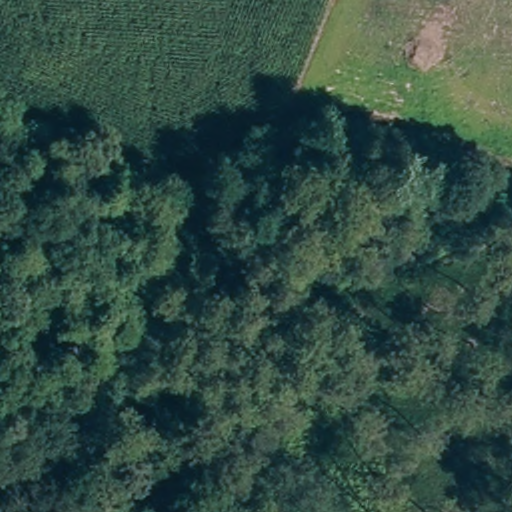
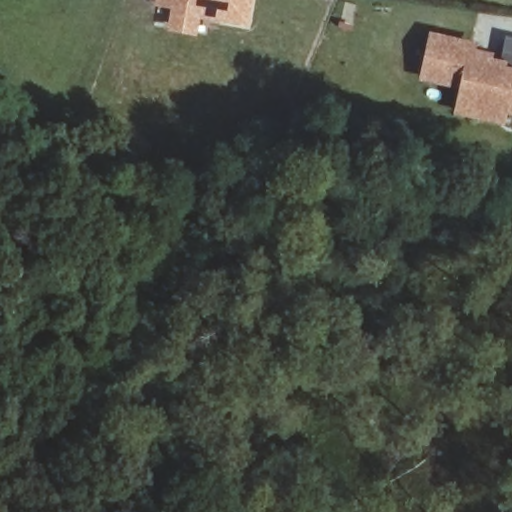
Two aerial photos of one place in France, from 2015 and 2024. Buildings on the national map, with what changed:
new [(249,28),(200,20),(197,37),(166,31),(170,9),(153,5),(154,0),(254,0),(249,28)]
new [(461,115),(464,104),(467,89),(427,81),(436,39),(477,48),(475,54),(493,58),(492,65),(506,68),(512,42),(512,114),(509,113),(506,124),(461,115)]

